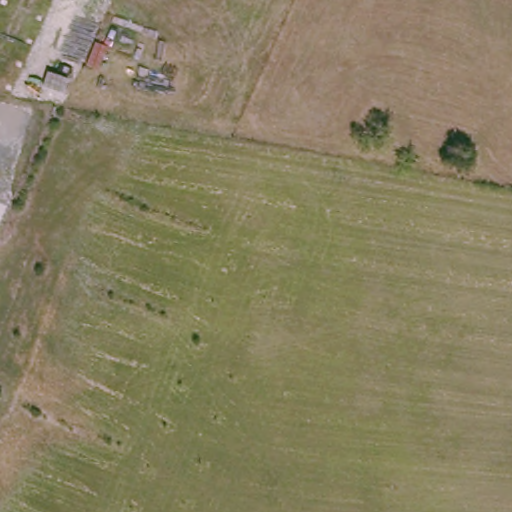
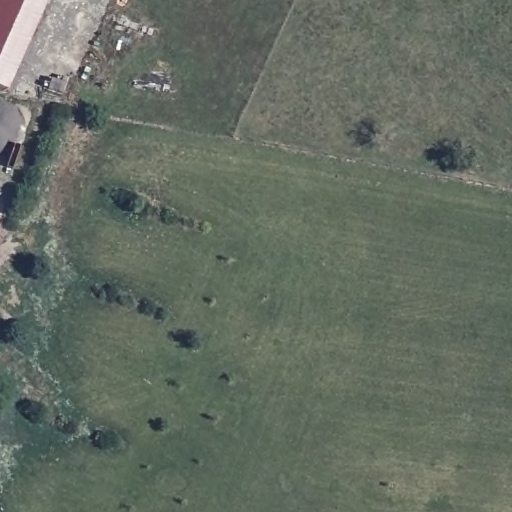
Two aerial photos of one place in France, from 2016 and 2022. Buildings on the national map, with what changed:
new [(0,87),(0,0),(51,0),(11,92),(0,87)]

